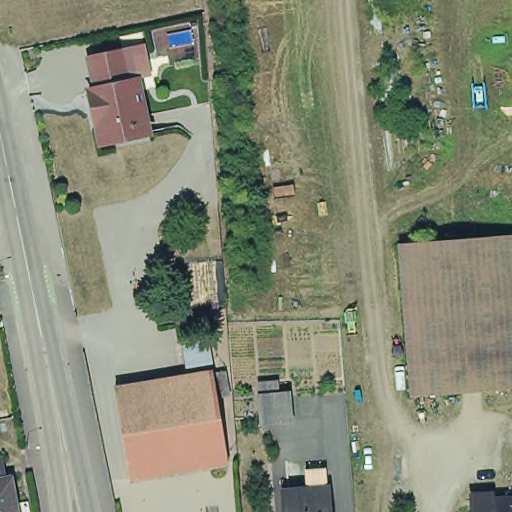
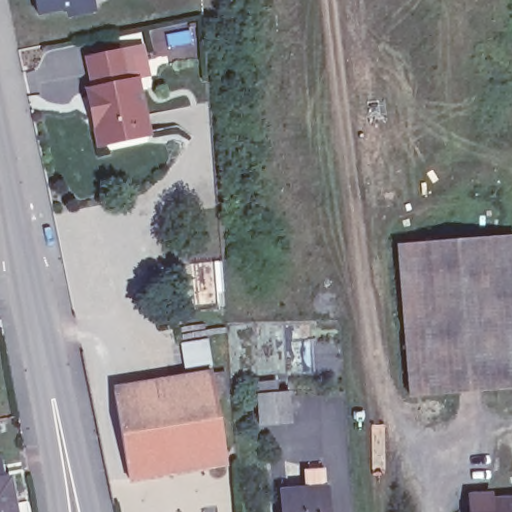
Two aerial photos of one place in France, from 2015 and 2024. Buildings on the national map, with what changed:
new [(100,15),(69,23),(66,11),(33,20),(29,0),(97,0),(100,15)]
unchanged [(147,130),(114,137),(98,140),(95,122),(90,102),(86,86),(91,84),(93,84),(87,54),(120,47),(127,45),(134,75),(136,75),(147,130)]
unchanged [(438,244),(480,241),(512,237),(512,393),(482,396),(432,397),(405,402),(397,246),(438,244)]
unchanged [(204,342),(208,369),(184,373),(180,346),(204,342)]
unchanged [(125,482),(111,392),(208,377),(221,375),(225,396),(212,398),(225,466),(125,482)]
unchanged [(264,392),(285,391),(287,418),(266,420),(254,421),(251,393),(264,392)]
unchanged [(0,512),(0,457),(4,457),(8,477),(15,476),(22,512),(0,512)]
unchanged [(303,486),(302,479),(325,478),(325,485),(327,512),(283,512),(281,487),(303,486)]
unchanged [(470,495),(490,494),(492,494),(493,502),(512,500),(512,512),(471,512),(471,508),(470,495)]

